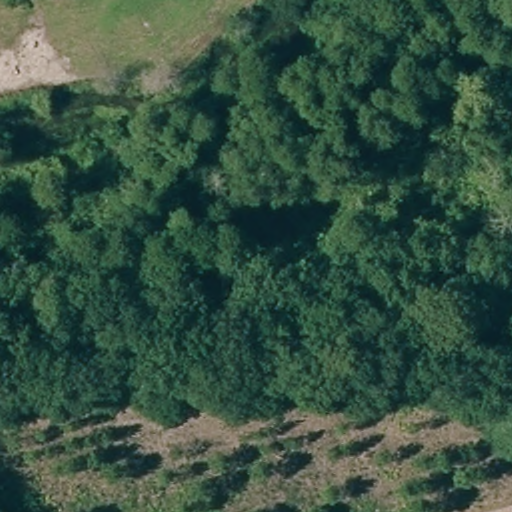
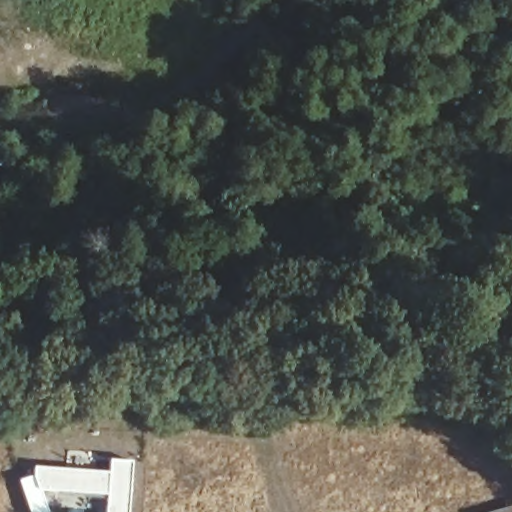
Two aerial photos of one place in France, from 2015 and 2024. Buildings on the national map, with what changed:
new [(33,475),(34,466),(108,472),(109,459),(133,461),(129,512),(106,512),(107,495),(41,490),(49,511),(47,512),(32,512),(21,480),(33,475)]
unchanged [(504,505),(512,503),(512,512),(480,512),(504,505)]

